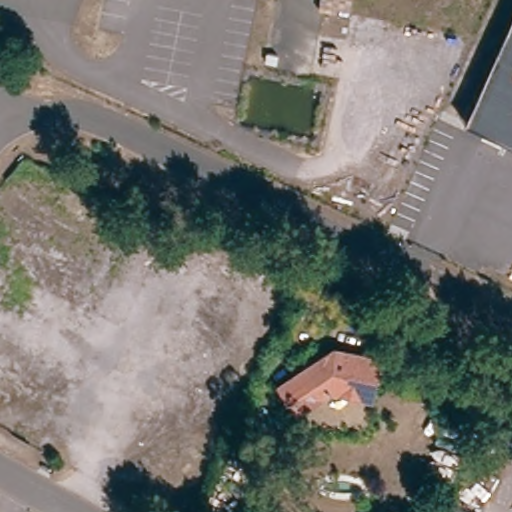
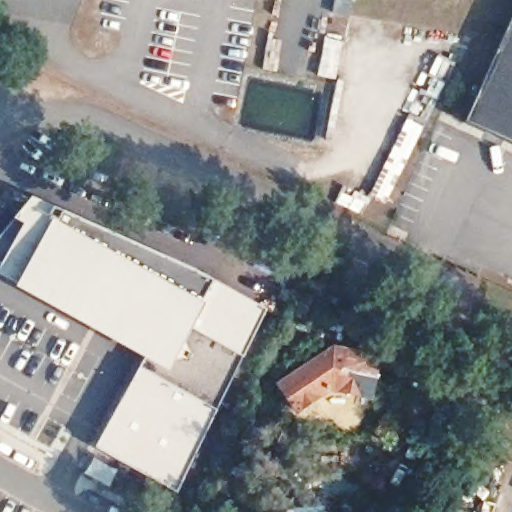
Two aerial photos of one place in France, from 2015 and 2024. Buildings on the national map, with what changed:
unchanged [(507,144),(466,125),(512,22),(512,146),(507,144)]
new [(147,361),(15,287),(0,273),(0,269),(4,263),(0,261),(0,236),(33,197),(198,271),(266,310),(243,357),(177,493),(96,450),(147,361)]
unchanged [(340,345),(383,354),(375,393),(336,385),(303,406),(287,381),(340,345)]

